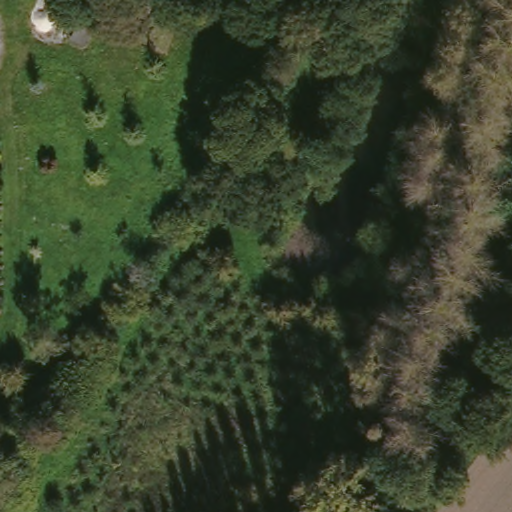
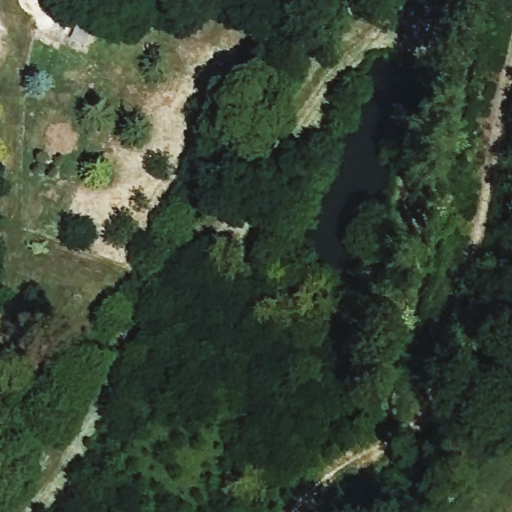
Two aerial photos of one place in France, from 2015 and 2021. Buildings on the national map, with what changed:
unchanged [(106,2),(84,47),(71,40),(91,0),(103,0),(106,2)]

